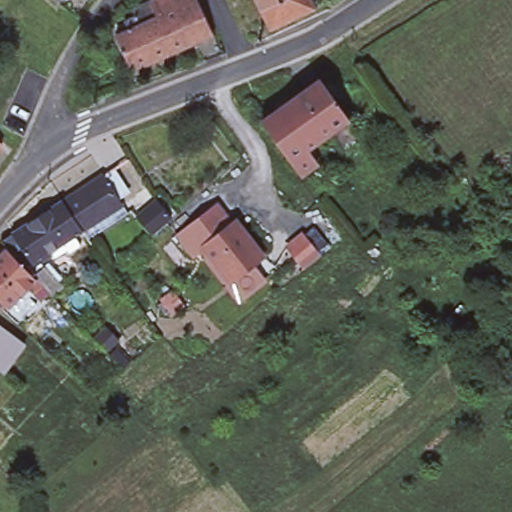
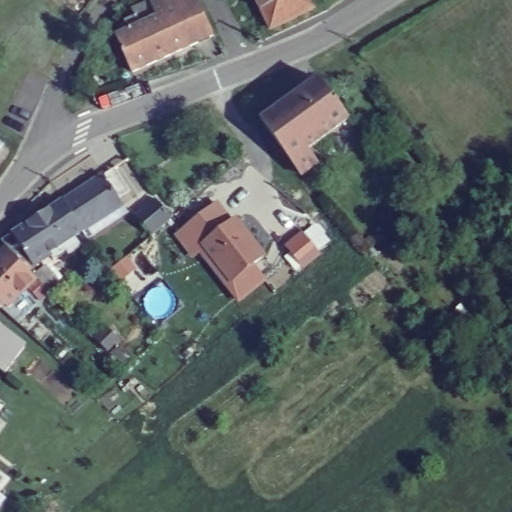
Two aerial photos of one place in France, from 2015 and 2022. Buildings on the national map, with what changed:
unchanged [(209,40),(190,48),(127,76),(113,41),(125,36),(120,26),(131,21),(127,13),(143,6),(158,0),(177,0),(180,2),(194,12),(197,15),(209,40)]
unchanged [(256,4),(255,0),(265,0),(256,4)]
unchanged [(265,0),(310,0),(311,3),(266,24),(256,4),(265,0)]
unchanged [(300,177),(273,140),(262,124),(275,115),(302,96),(317,85),(346,125),(303,156),(312,169),(300,177)]
unchanged [(117,221),(110,209),(79,229),(59,199),(99,174),(106,169),(120,189),(112,194),(118,203),(117,204),(125,217),(117,221)]
unchanged [(79,229),(70,235),(77,245),(64,254),(57,244),(45,252),(48,255),(31,267),(29,263),(26,259),(19,264),(0,244),(0,237),(8,232),(59,199),(79,229)]
unchanged [(166,216),(147,233),(132,216),(151,200),(166,216)]
unchanged [(231,223),(231,224),(235,221),(259,251),(263,256),(232,280),(230,277),(205,245),(199,250),(193,255),(178,235),(217,205),(231,223)]
unchanged [(302,234),(318,254),(304,266),(287,245),(302,234)]
unchanged [(31,279),(3,307),(0,304),(0,249),(1,247),(31,279)]
unchanged [(42,267),(54,279),(55,278),(61,284),(50,296),(31,277),(42,267)]
unchanged [(17,347),(1,369),(0,369),(0,329),(20,344),(17,347)]

